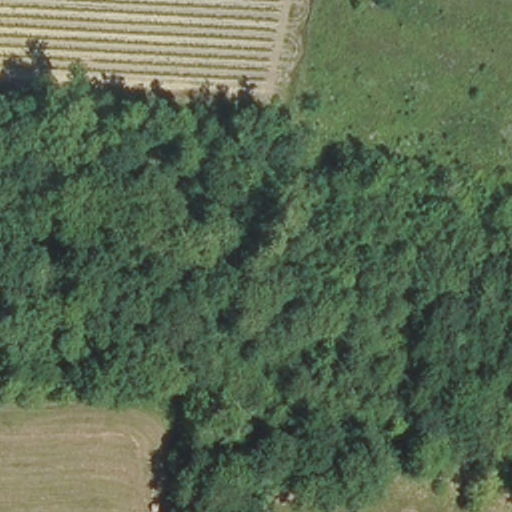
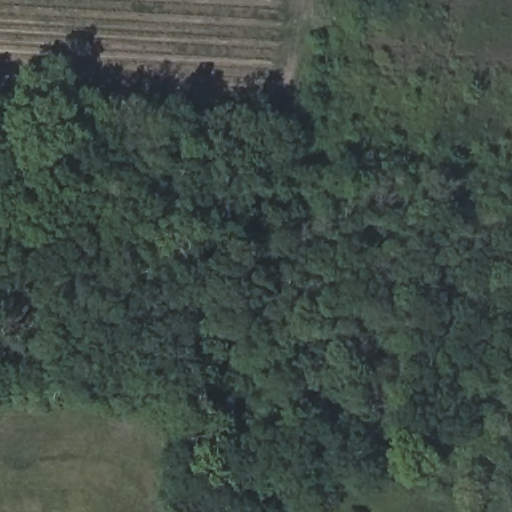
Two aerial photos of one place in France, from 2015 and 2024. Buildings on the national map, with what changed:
[]

